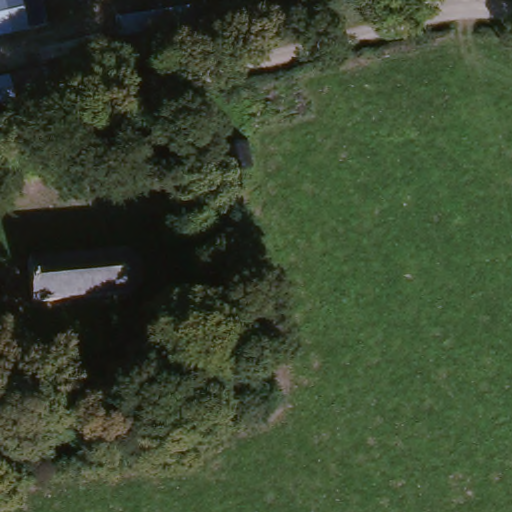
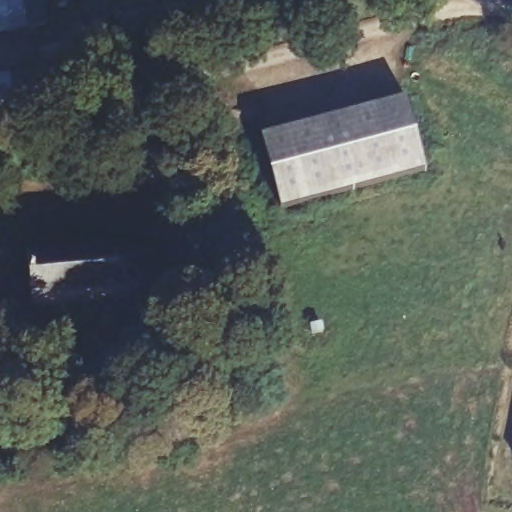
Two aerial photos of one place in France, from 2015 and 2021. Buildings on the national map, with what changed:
unchanged [(51,21),(4,31),(0,14),(0,0),(47,0),(51,21)]
unchanged [(196,7),(198,25),(124,36),(122,19),(196,7)]
unchanged [(50,95),(0,104),(0,79),(45,70),(50,95)]
new [(426,174),(280,214),(260,140),(406,100),(426,174)]
unchanged [(112,254),(124,251),(127,255),(131,260),(135,265),(134,281),(132,286),(125,296),(30,305),(26,263),(112,254)]

